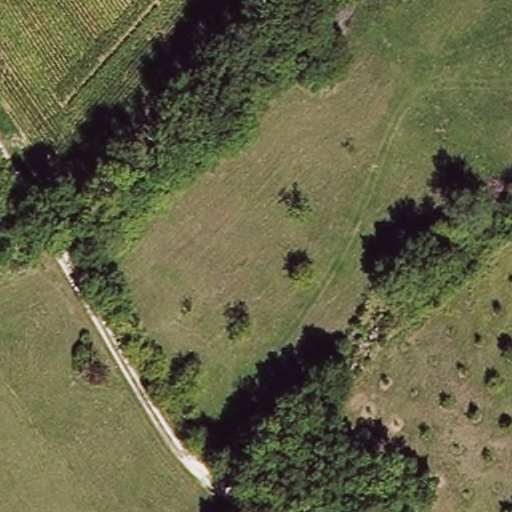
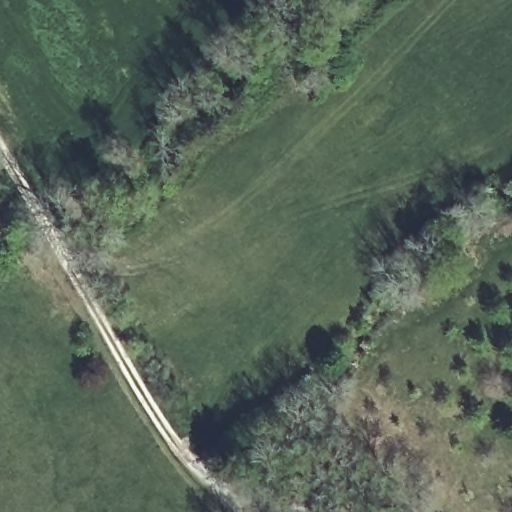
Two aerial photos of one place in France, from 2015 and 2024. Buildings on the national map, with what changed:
unchanged [(323,44),(334,52),(324,63),(314,54),(323,44)]

